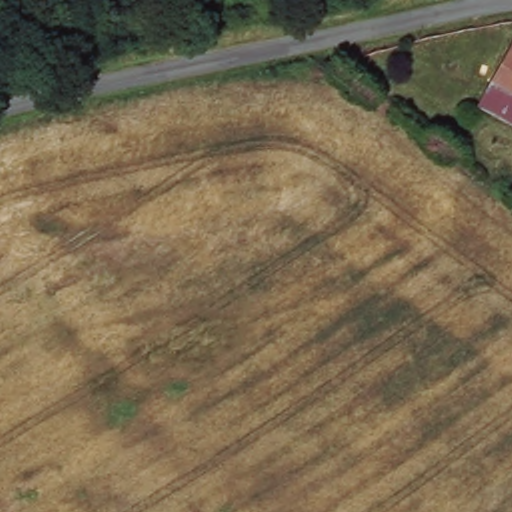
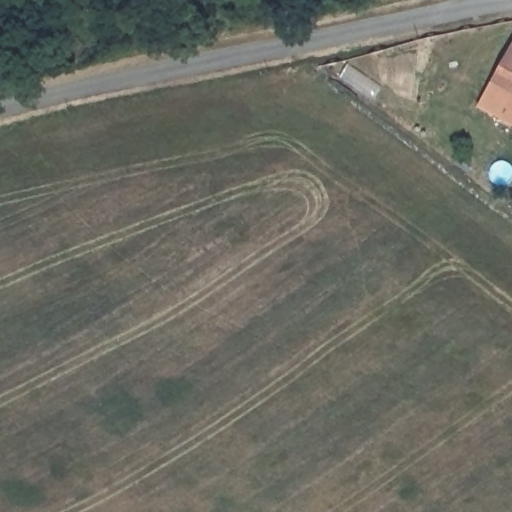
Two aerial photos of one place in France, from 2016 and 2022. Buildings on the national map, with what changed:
unchanged [(512,104),(487,90),(512,44),(512,104)]
unchanged [(512,133),(472,111),(487,90),(512,104),(512,133)]

